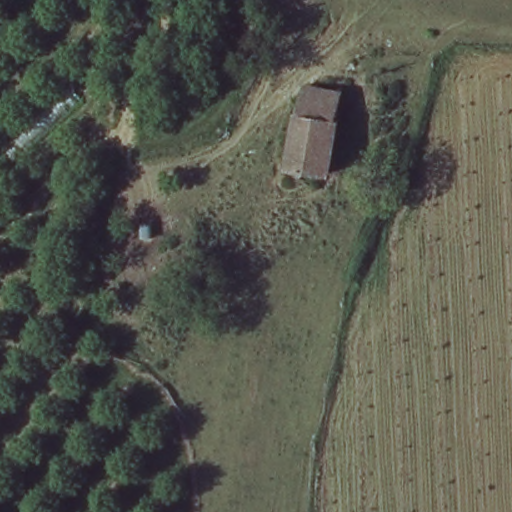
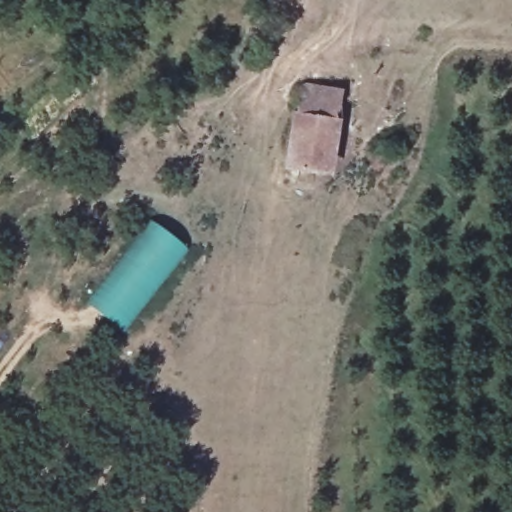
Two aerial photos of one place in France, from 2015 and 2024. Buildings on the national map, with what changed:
unchanged [(299,87),(337,93),(333,125),(295,120),(299,87)]
unchanged [(328,173),(288,168),(295,120),(333,125),(328,173)]
new [(149,219),(188,250),(124,332),(85,302),(149,219)]

